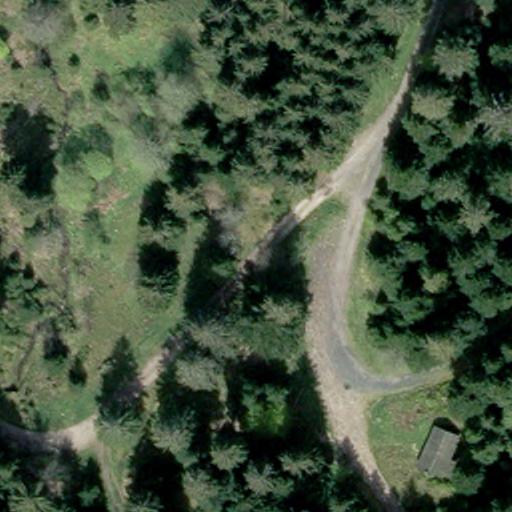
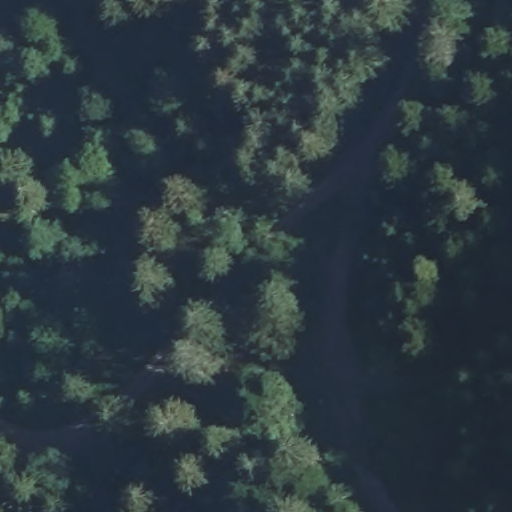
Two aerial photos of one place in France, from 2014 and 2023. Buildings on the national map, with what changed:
unchanged [(461,442),(446,482),(417,471),(432,434),(461,442)]

